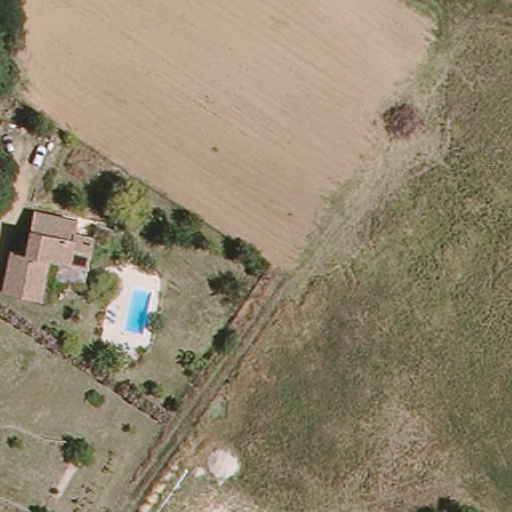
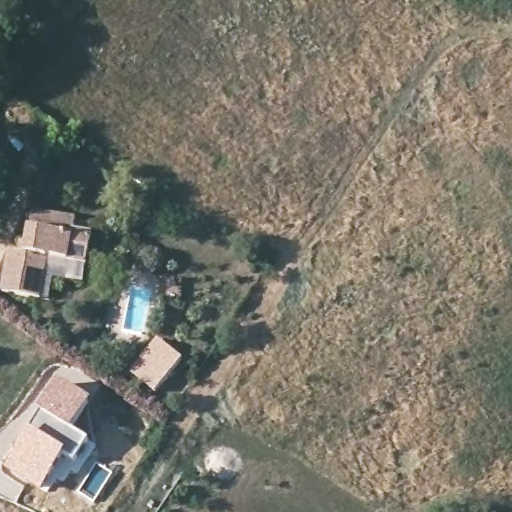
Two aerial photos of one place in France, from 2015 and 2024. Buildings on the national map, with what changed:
unchanged [(76,226),(73,239),(91,242),(86,268),(51,262),(41,307),(3,298),(12,260),(26,262),(35,219),(76,226)]
new [(184,358),(155,393),(131,373),(158,338),(184,358)]
new [(40,407),(58,380),(92,401),(73,431),(88,441),(74,466),(63,458),(42,492),(4,472),(40,407)]

